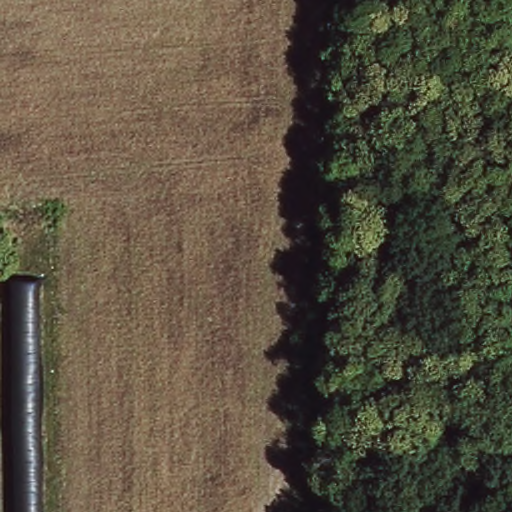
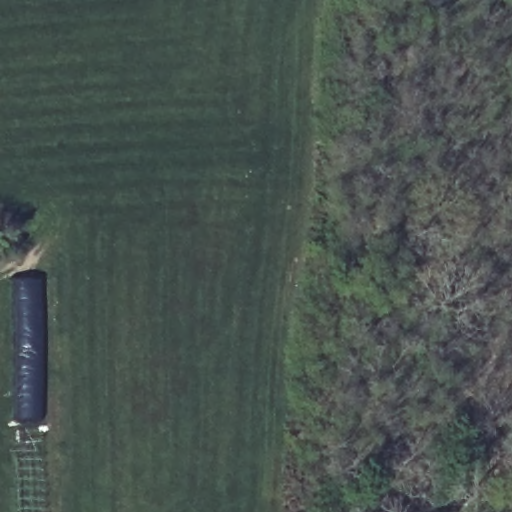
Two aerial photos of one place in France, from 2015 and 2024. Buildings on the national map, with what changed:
unchanged [(44,512),(18,512),(13,279),(39,278),(44,512)]

